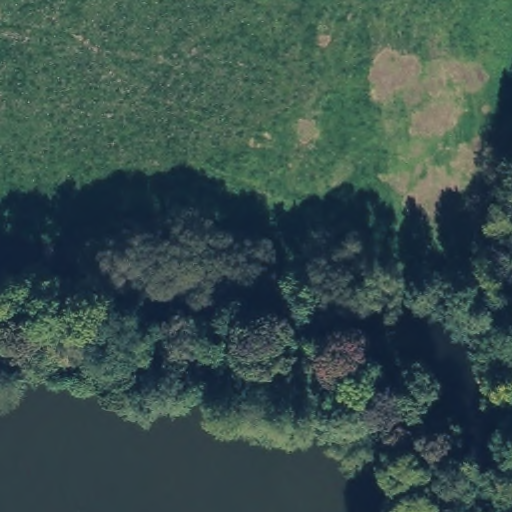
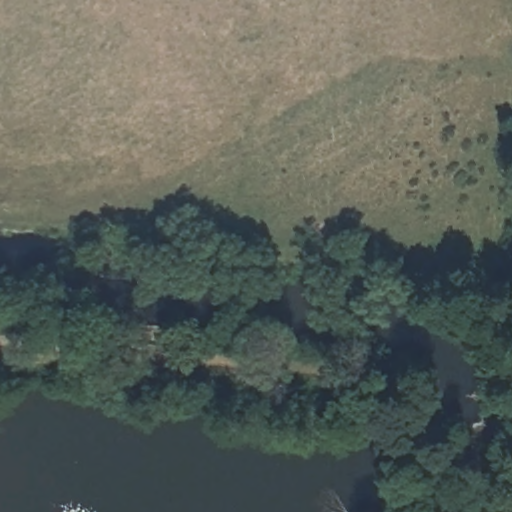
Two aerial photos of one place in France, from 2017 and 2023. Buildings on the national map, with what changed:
[]

